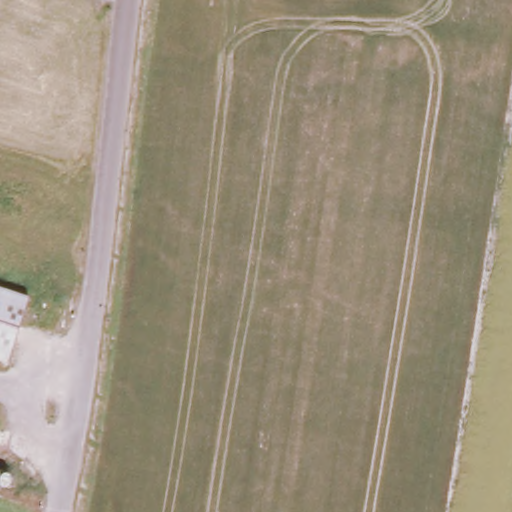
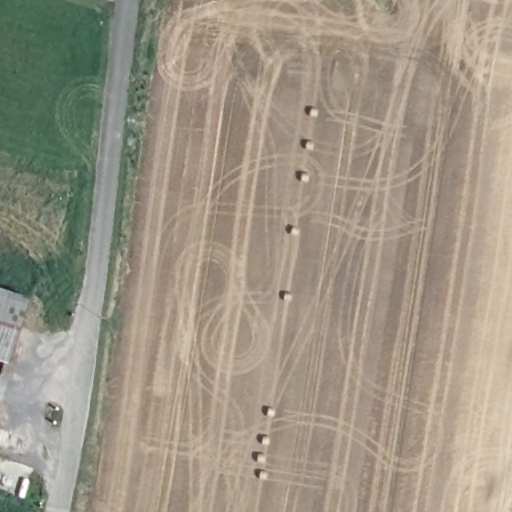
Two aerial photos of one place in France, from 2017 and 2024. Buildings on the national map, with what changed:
unchanged [(28,300),(7,366),(0,363),(0,291),(28,300)]

